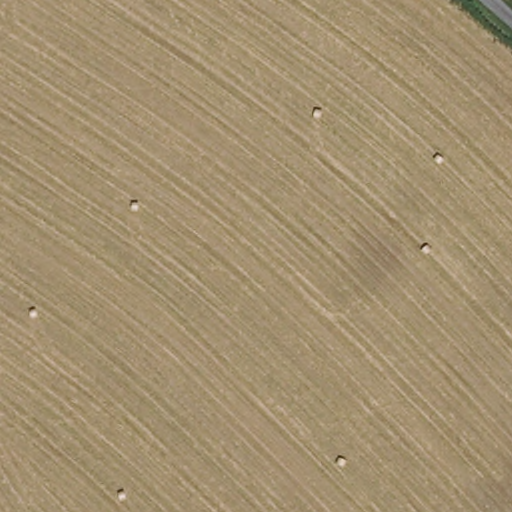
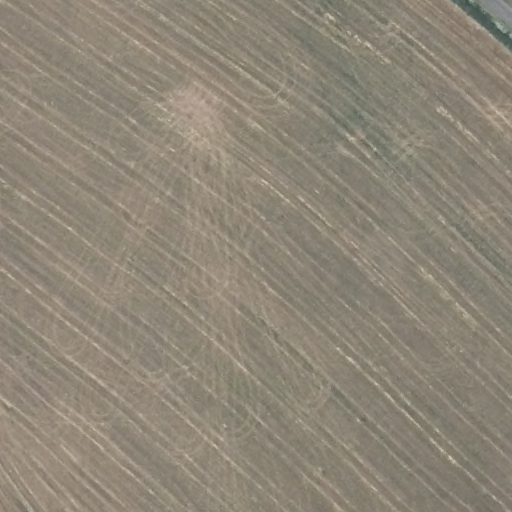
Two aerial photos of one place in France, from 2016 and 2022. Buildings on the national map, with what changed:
[]

